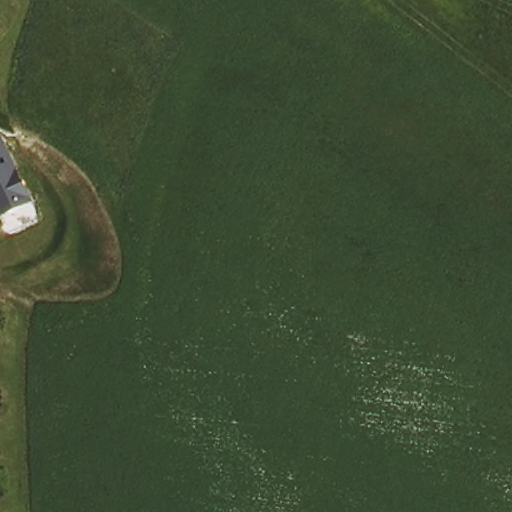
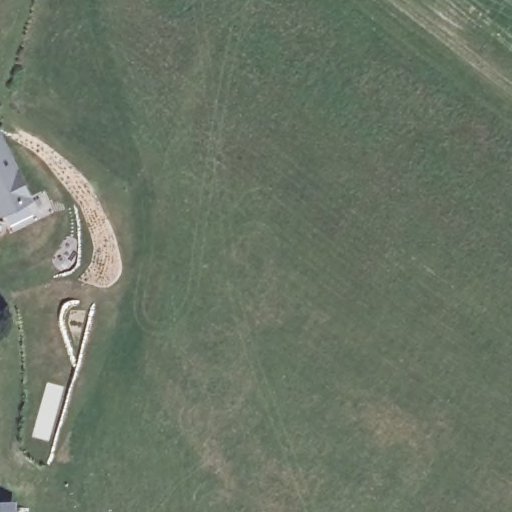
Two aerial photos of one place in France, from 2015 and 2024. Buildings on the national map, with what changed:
unchanged [(0,216),(0,129),(33,201),(0,216)]
new [(14,512),(0,512),(0,500),(15,501),(14,512)]

